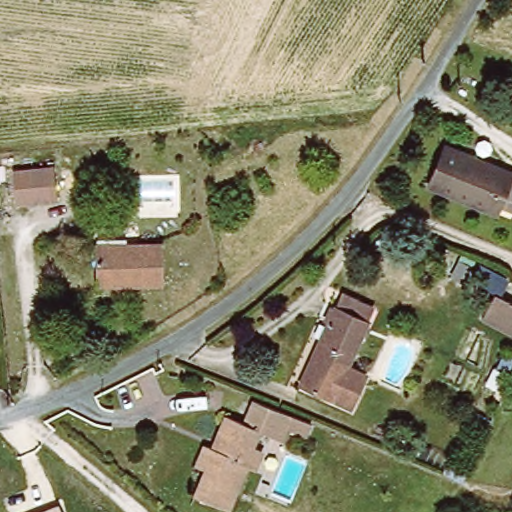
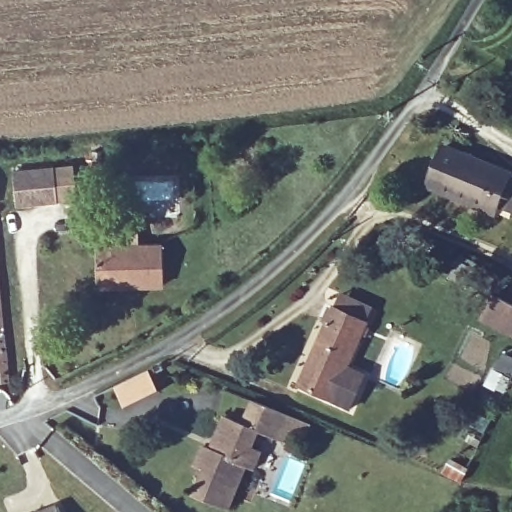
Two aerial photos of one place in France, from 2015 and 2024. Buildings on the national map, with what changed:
unchanged [(512,178),(512,211),(495,204),(492,213),(422,184),(437,145),(512,178)]
unchanged [(53,173),(55,203),(12,206),(10,176),(53,173)]
unchanged [(162,246),(161,290),(97,291),(96,246),(162,246)]
unchanged [(367,379),(355,414),(297,391),(331,313),(337,298),(372,311),(366,326),(347,370),(367,379)]
unchanged [(483,323),(497,298),(512,305),(512,336),(483,323)]
unchanged [(258,433),(252,448),(262,452),(254,472),(245,470),(229,512),(226,512),(194,499),(203,472),(194,468),(203,446),(211,450),(222,418),(239,425),(247,403),(289,420),(280,442),(258,433)]
unchanged [(60,512),(42,512),(58,506),(60,512)]

